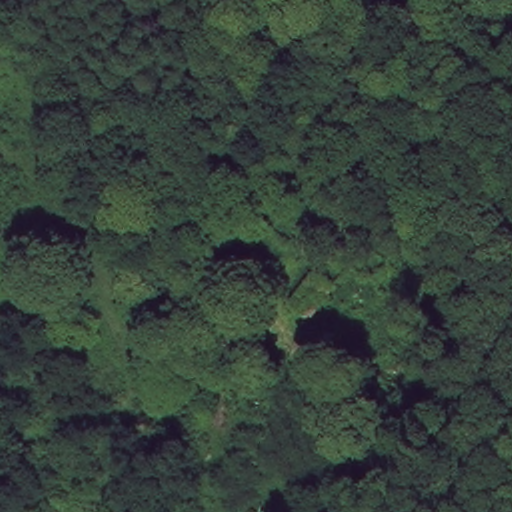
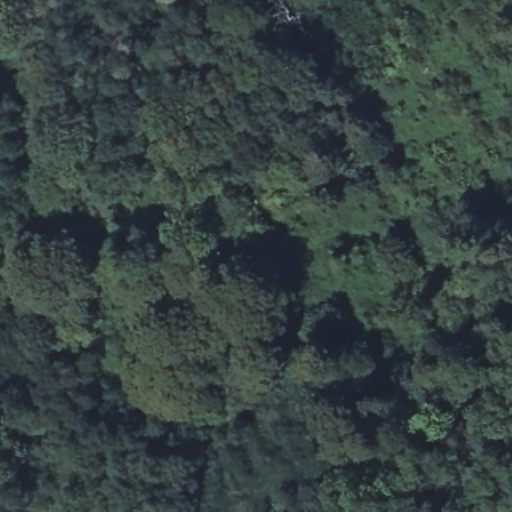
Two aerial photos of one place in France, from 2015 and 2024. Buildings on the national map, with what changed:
unchanged [(320,232),(305,215),(257,245),(242,222),(325,169),(355,208),(320,232)]
unchanged [(458,249),(472,263),(452,281),(437,267),(458,249)]
unchanged [(253,303),(272,286),(283,275),(298,289),(286,300),(268,318),(253,303)]

